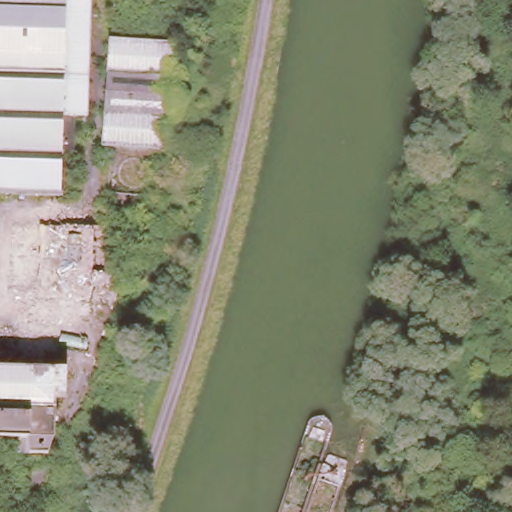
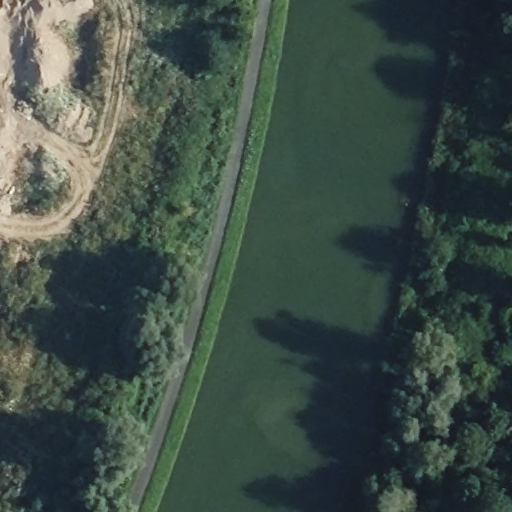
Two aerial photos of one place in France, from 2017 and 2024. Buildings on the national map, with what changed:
demolished [(87,120),(62,120),(62,198),(0,194),(0,0),(91,0),(87,120)]
demolished [(170,45),(170,151),(104,148),(109,42),(112,7),(174,9),(170,45)]
demolished [(9,222),(96,225),(95,276),(107,274),(109,289),(91,290),(92,305),(9,305),(9,222)]
demolished [(69,401),(57,400),(57,440),(52,459),(29,460),(31,439),(0,439),(0,370),(69,372),(69,401)]

